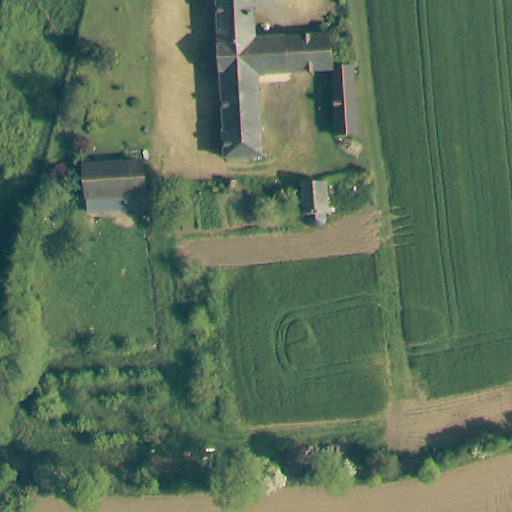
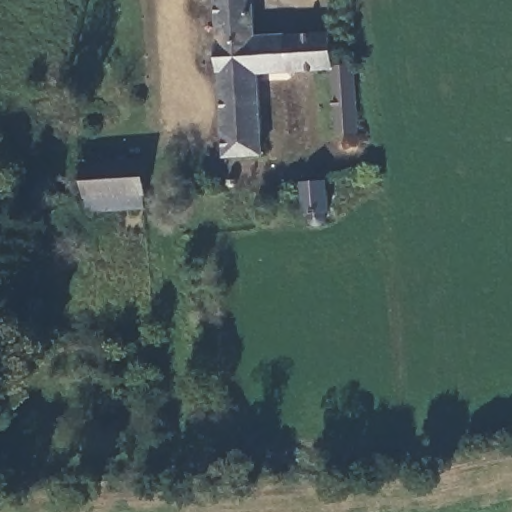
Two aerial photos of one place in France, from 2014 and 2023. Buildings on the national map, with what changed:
unchanged [(261,70),(266,154),(227,156),(219,0),(258,0),(260,35),(336,31),(336,32),(338,67),(261,70)]
unchanged [(359,64),(365,131),(340,132),(338,67),(359,64)]
unchanged [(334,160),(334,191),(331,192),(325,203),(318,204),(315,198),(314,192),(310,192),(310,160),(334,160)]
unchanged [(146,162),(149,190),(146,190),(89,195),(88,166),(146,162)]
unchanged [(146,190),(147,208),(90,213),(89,195),(146,190)]

